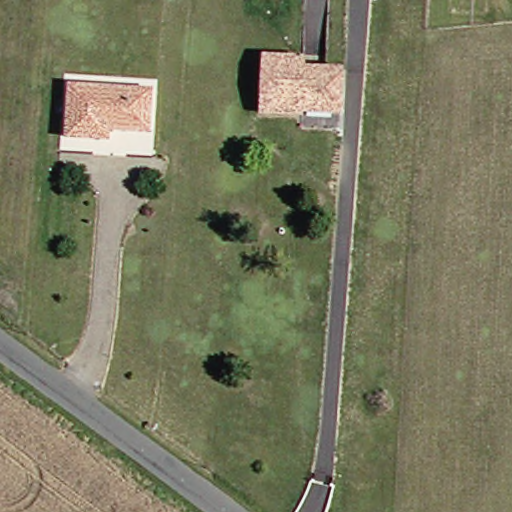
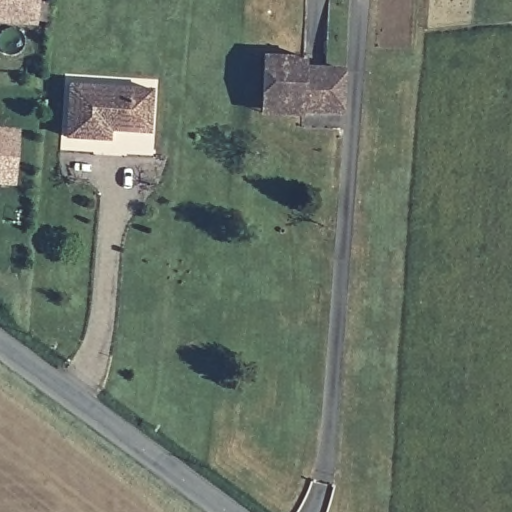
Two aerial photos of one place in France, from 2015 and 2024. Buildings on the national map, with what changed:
new [(37,26),(0,23),(0,0),(39,0),(37,26)]
unchanged [(269,114),(269,101),(271,54),(314,54),(313,65),(356,66),(352,110),(314,110),(313,117),(269,114)]
unchanged [(155,131),(117,127),(116,137),(76,137),(76,82),(158,84),(155,131)]
new [(0,185),(0,126),(19,127),(14,187),(0,185)]

